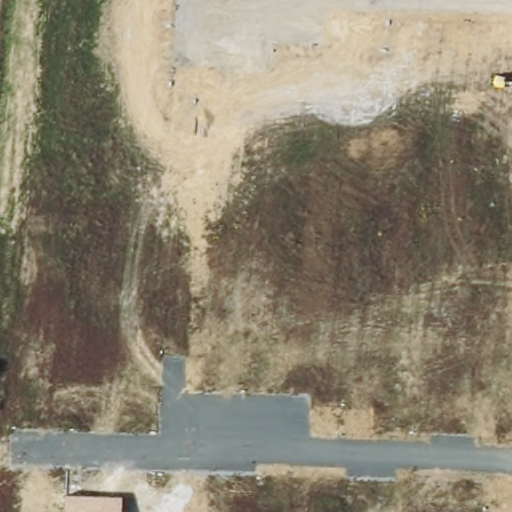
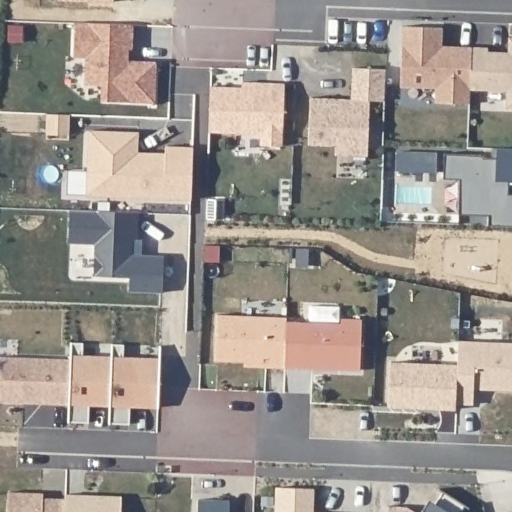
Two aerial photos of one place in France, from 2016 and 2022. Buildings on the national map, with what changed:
new [(132,25),(131,50),(128,50),(127,61),(155,62),(154,104),(100,101),(101,86),(84,85),(85,58),(72,57),(74,24),(132,25)]
new [(401,26),(441,28),(441,46),(450,47),(471,47),(470,90),(469,105),(434,103),(435,88),(400,87),(400,82),(401,26)]
new [(487,48),(487,52),(500,52),(507,53),(508,37),(512,38),(512,108),(505,108),(506,91),(470,90),(471,47),(487,48)]
new [(334,99),(345,100),(351,100),(352,68),(385,70),(384,101),(369,100),(367,156),(335,155),(335,145),(308,145),(310,98),(334,99)]
new [(241,88),(241,82),(266,84),(283,84),(281,146),(260,145),(260,134),(208,132),(210,87),(241,88)]
new [(138,133),(137,153),(150,154),(165,154),(165,147),(192,147),(190,200),(86,196),(89,131),(138,133)]
new [(488,225),(488,215),(458,214),(460,179),(443,179),(444,154),(485,155),(484,157),(491,157),(492,147),(497,148),(512,148),(512,226),(488,225)]
new [(396,152),(435,154),(435,173),(396,171),(396,152)]
new [(215,360),(216,315),(286,318),(286,322),(285,367),(265,367),(245,366),(245,361),(215,360)]
new [(285,367),(286,322),(341,324),(341,319),(361,320),(359,371),(340,370),(306,368),(285,367)]
new [(457,365),(457,341),(512,343),(512,391),(473,390),(472,405),(455,404),(457,365)]
new [(130,407),(130,425),(109,424),(109,406),(89,406),(89,423),(67,422),(68,420),(69,405),(70,360),(70,343),(83,344),(82,356),(111,357),(111,345),(124,345),(124,358),(160,359),(159,401),(158,408),(130,407)]
new [(0,403),(0,372),(0,357),(70,360),(69,405),(42,404),(24,403),(0,403)]
new [(387,406),(390,362),(457,365),(455,404),(455,409),(438,408),(414,407),(387,406)]
new [(314,489),(313,512),(275,512),(276,487),(314,489)]
new [(65,512),(7,512),(8,491),(43,493),(44,500),(65,500),(65,512)]
new [(423,508),(429,500),(435,504),(443,491),(465,505),(461,512),(421,512),(423,508)]
unchanged [(121,512),(65,512),(65,495),(121,497),(121,512)]
new [(230,501),(229,512),(198,512),(199,500),(230,501)]
new [(407,507),(414,512),(387,512),(387,506),(407,507)]

